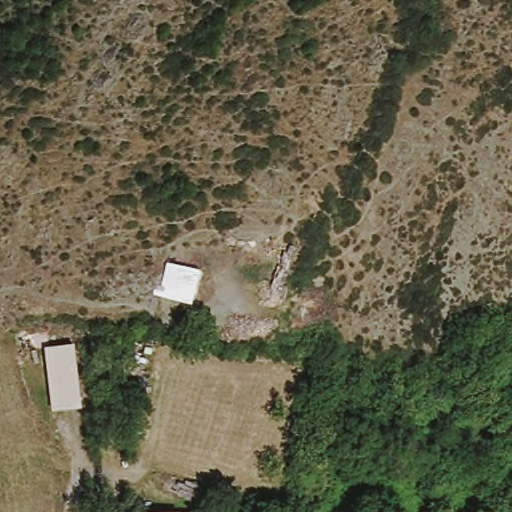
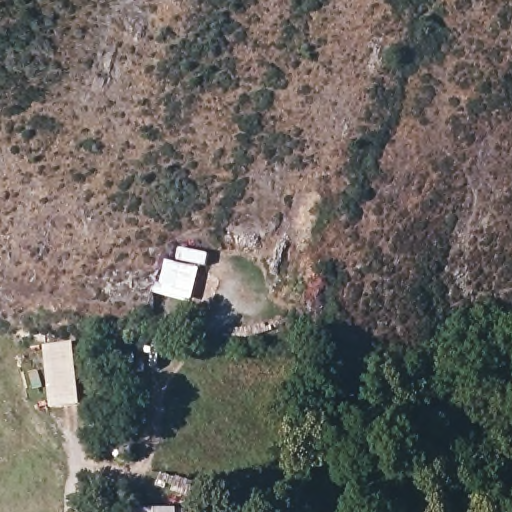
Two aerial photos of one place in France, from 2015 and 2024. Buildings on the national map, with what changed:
unchanged [(197,304),(162,295),(165,262),(202,265),(197,304)]
unchanged [(43,341),(76,336),(85,406),(50,409),(43,341)]
unchanged [(198,508),(198,512),(137,512),(137,508),(198,508)]

